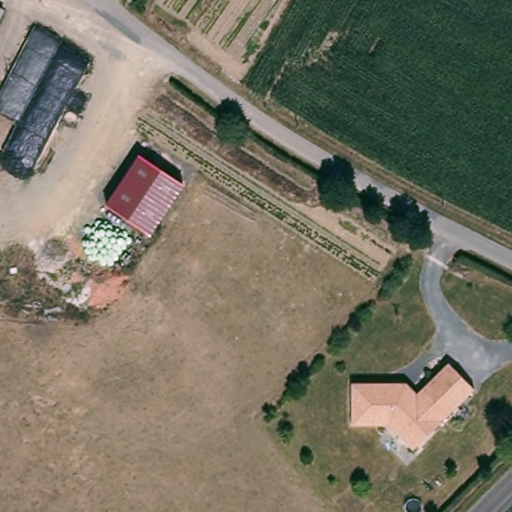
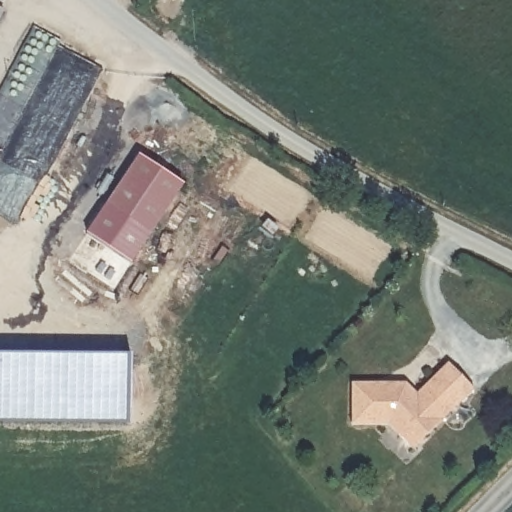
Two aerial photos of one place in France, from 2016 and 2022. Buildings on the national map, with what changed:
unchanged [(0,17),(0,9),(3,11),(0,17)]
unchanged [(183,184),(150,234),(105,204),(137,154),(183,184)]
new [(131,263),(86,233),(105,204),(150,234),(131,263)]
new [(0,354),(131,355),(130,424),(0,423),(0,354)]
unchanged [(474,388),(416,452),(392,428),(354,428),(353,386),(406,385),(418,395),(447,363),(474,388)]

